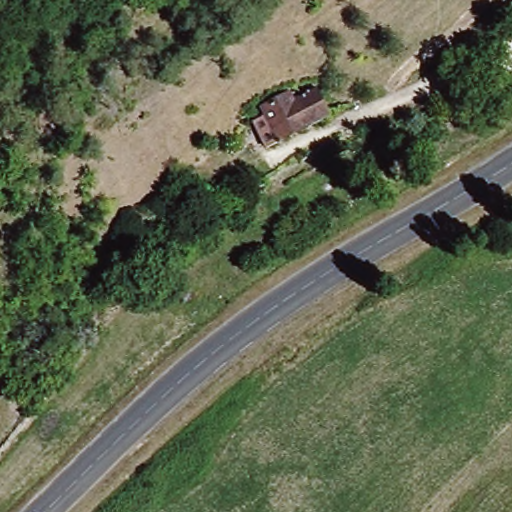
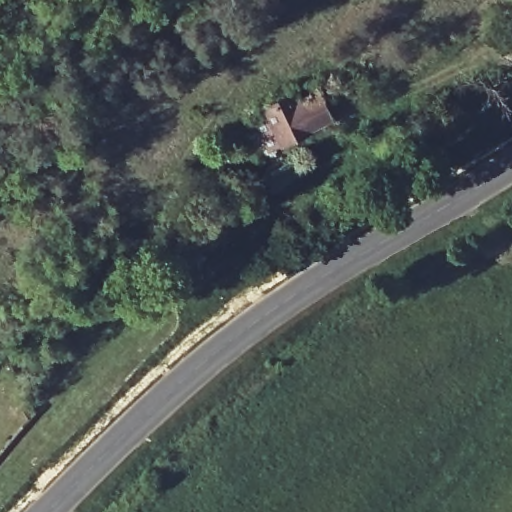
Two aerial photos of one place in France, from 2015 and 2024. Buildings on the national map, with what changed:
unchanged [(507,27),(512,26),(512,43),(507,27)]
unchanged [(279,98),(283,105),(315,88),(329,114),(280,140),(262,107),(279,98)]

